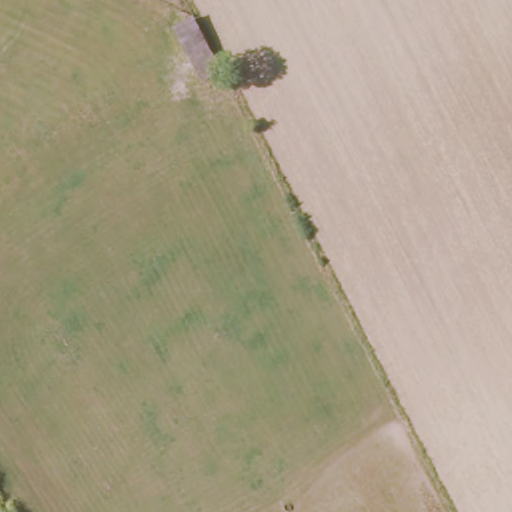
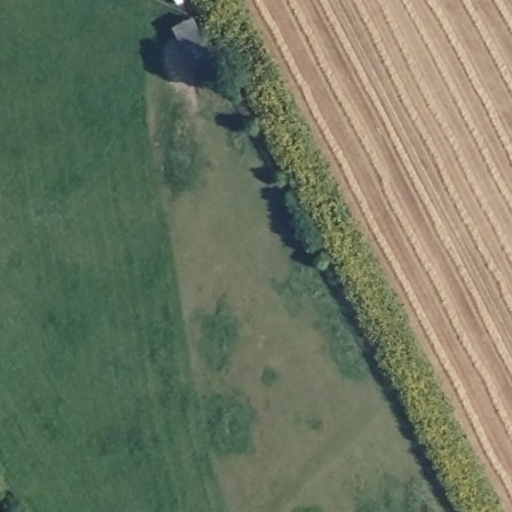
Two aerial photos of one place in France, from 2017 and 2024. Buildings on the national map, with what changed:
unchanged [(201,79),(175,29),(194,19),(220,69),(201,79)]

